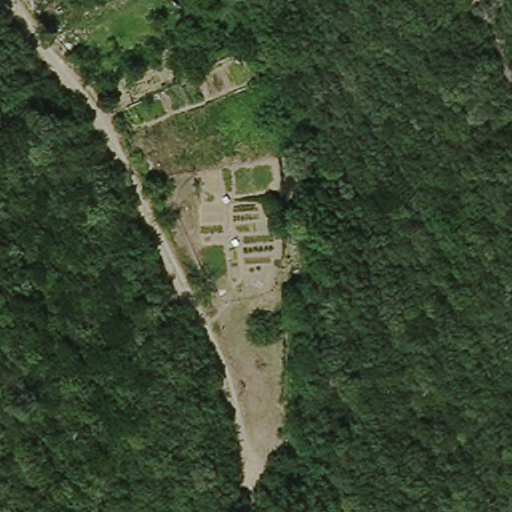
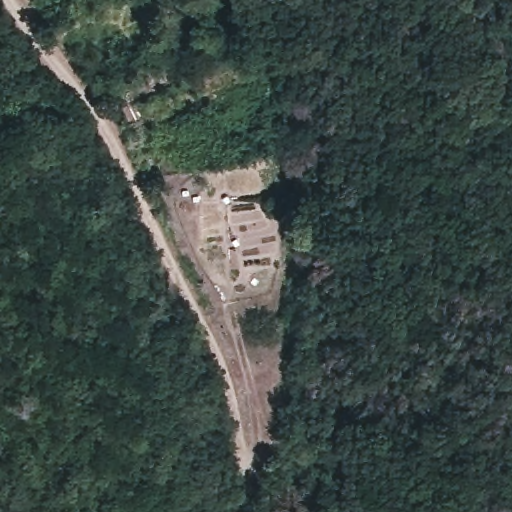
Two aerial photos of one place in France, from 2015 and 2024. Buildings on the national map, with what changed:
[]

